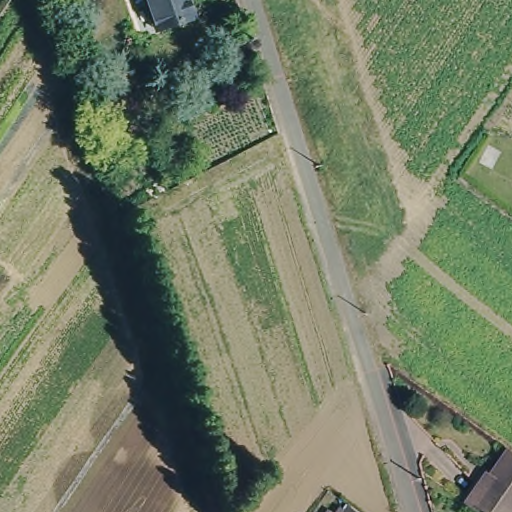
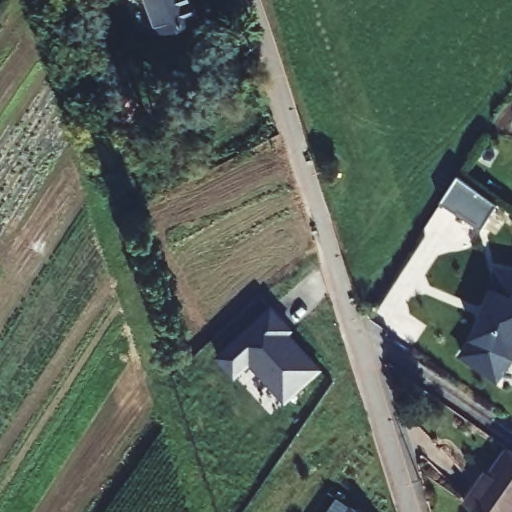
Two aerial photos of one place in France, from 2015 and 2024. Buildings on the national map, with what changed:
unchanged [(151,28),(141,0),(182,0),(188,16),(151,28)]
new [(456,180),(496,207),(481,233),(441,204),(456,180)]
new [(499,379),(465,354),(476,337),(495,288),(500,269),(512,271),(512,358),(499,379)]
new [(296,330),(292,333),(324,370),(287,405),(251,364),(236,379),(218,358),(273,305),(296,330)]
unchanged [(463,500),(478,477),(485,482),(490,474),(487,472),(506,446),(512,451),(512,512),(480,512),(463,500)]
unchanged [(354,512),(352,512),(353,511),(354,512)]

